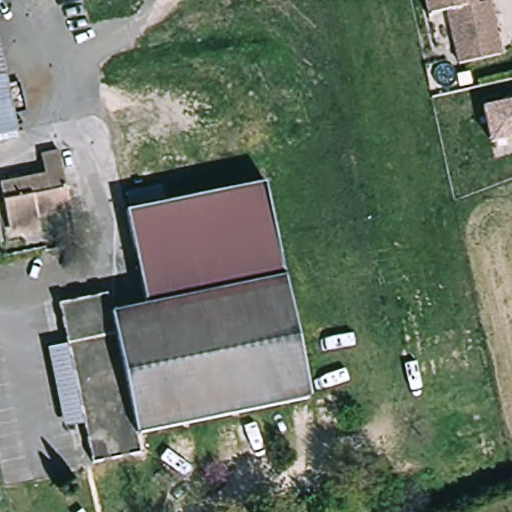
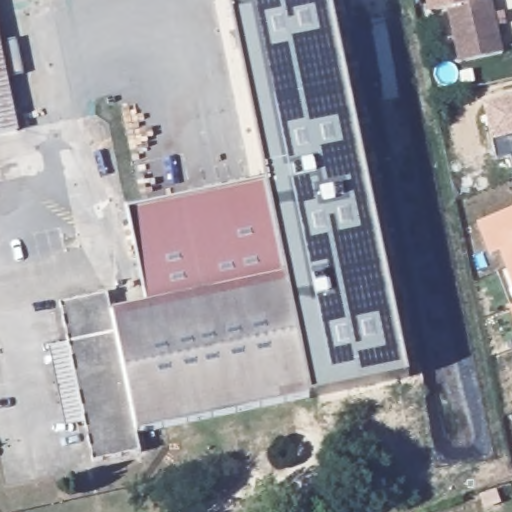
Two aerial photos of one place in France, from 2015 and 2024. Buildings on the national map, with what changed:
new [(409,376),(315,397),(271,180),(268,181),(228,0),(331,0),(409,376)]
unchanged [(452,36),(445,2),(425,6),(424,0),(488,0),(498,47),(456,56),(452,36)]
unchanged [(22,130),(0,135),(0,21),(22,130)]
unchanged [(512,137),(492,141),(485,106),(512,100),(512,137)]
demolished [(65,150),(77,209),(42,217),(45,229),(22,234),(15,199),(8,200),(5,184),(50,174),(46,154),(65,150)]
unchanged [(65,302),(112,292),(116,310),(150,303),(131,210),(271,180),(315,397),(141,433),(145,452),(97,461),(90,422),(73,343),(65,302)]
new [(497,274),(506,270),(499,255),(491,258),(478,224),(512,210),(512,314),(510,307),(497,274)]
unchanged [(70,426),(53,347),(73,343),(90,422),(70,426)]
new [(480,493),(496,487),(500,500),(485,506),(480,493)]

